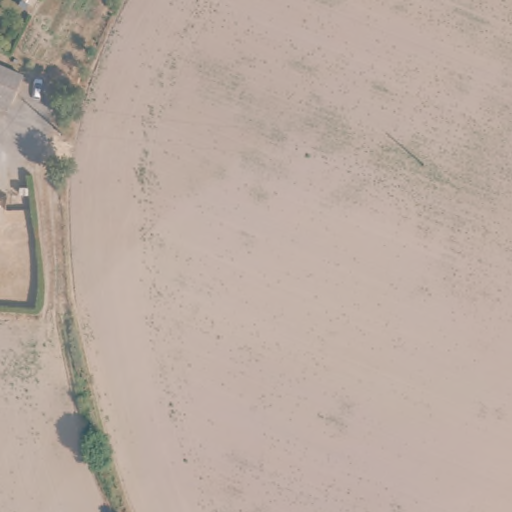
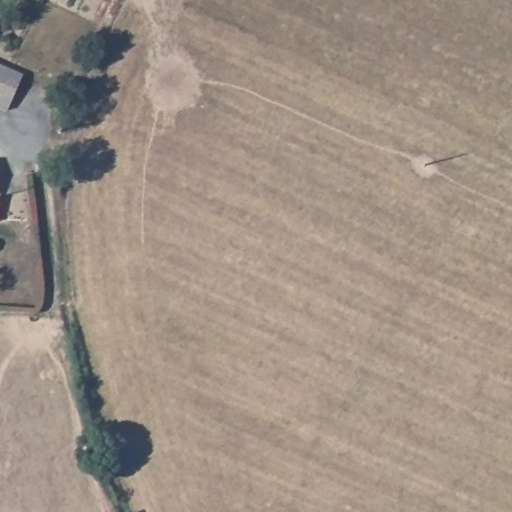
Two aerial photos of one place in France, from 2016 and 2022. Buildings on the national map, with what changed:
unchanged [(7,109),(0,105),(0,64),(20,75),(7,109)]
unchanged [(4,226),(0,227),(0,202),(4,202),(4,226)]

